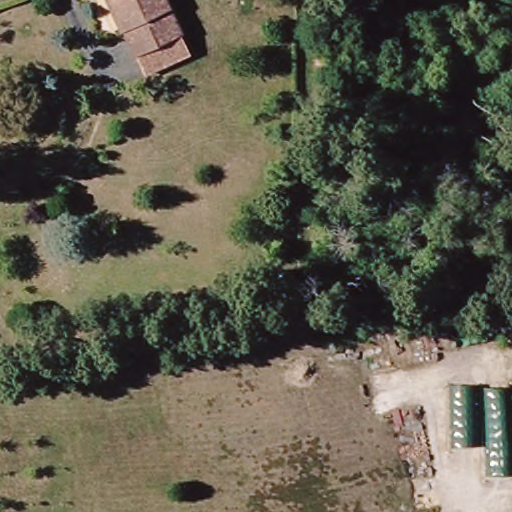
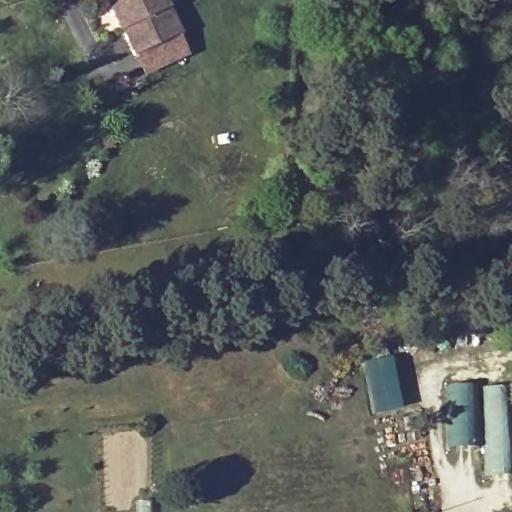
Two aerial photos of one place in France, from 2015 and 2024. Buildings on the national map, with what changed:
unchanged [(125,32),(111,0),(169,0),(183,35),(193,57),(154,72),(145,54),(132,30),(125,32)]
new [(401,408),(373,414),(362,362),(391,357),(401,408)]
unchanged [(450,386),(476,385),(477,446),(451,447),(450,386)]
unchanged [(512,386),(512,474),(487,474),(484,386),(512,386)]

